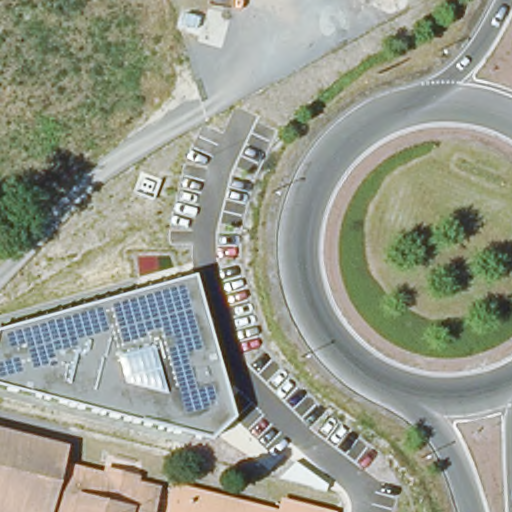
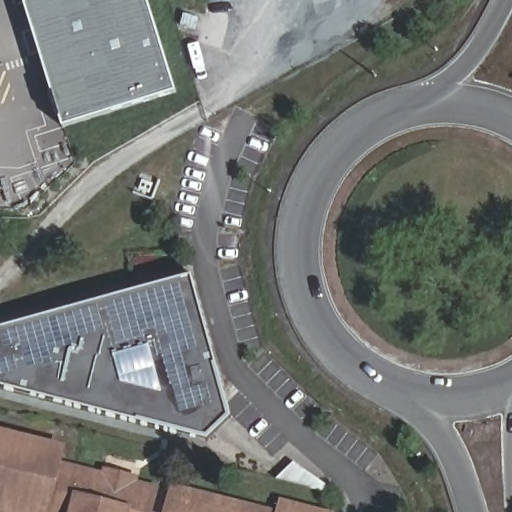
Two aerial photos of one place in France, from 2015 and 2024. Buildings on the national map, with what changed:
new [(65,130),(23,0),(148,0),(178,94),(65,130)]
unchanged [(0,385),(0,328),(193,275),(232,415),(209,438),(0,385)]
unchanged [(50,511),(50,512),(15,512),(0,508),(0,429),(67,447),(64,460),(163,482),(155,512),(54,512),(50,511)]
unchanged [(174,485),(279,512),(282,499),(330,512),(167,512),(174,485)]

